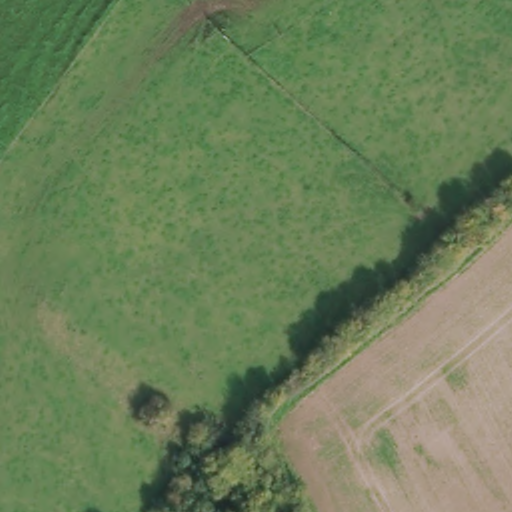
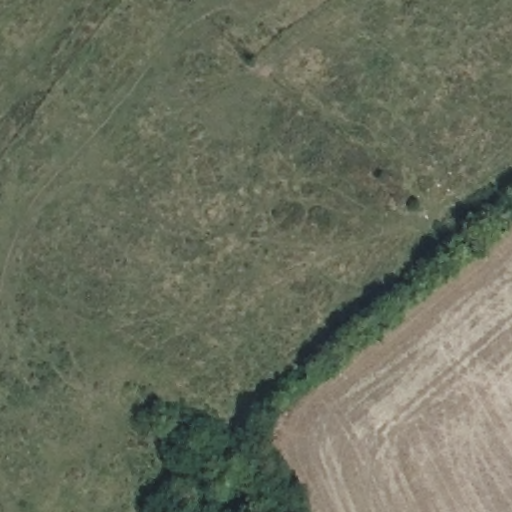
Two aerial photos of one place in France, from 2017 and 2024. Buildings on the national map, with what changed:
unchanged [(182,482),(197,500),(183,512),(167,512),(160,503),(182,482)]

